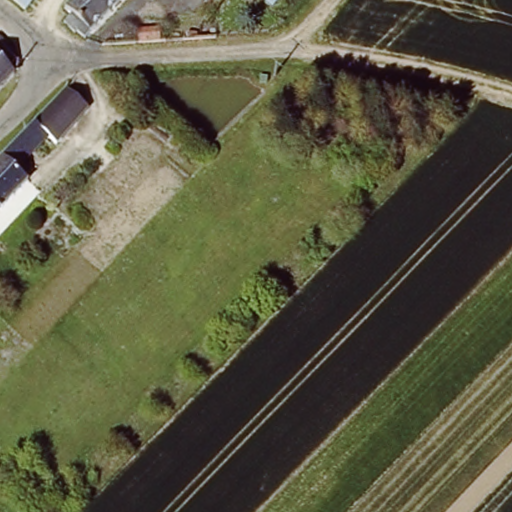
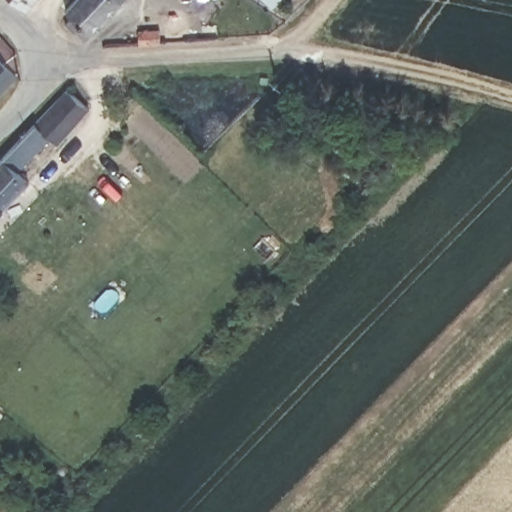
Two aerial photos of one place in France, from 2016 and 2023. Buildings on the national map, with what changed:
unchanged [(11,0),(28,0),(21,9),(11,0)]
unchanged [(64,19),(69,14),(62,7),(69,0),(116,0),(81,35),(64,19)]
unchanged [(131,35),(153,34),(154,46),(132,47),(131,35)]
unchanged [(6,49),(7,74),(0,80),(0,42),(6,49)]
unchanged [(44,153),(36,145),(19,161),(34,176),(0,209),(0,158),(71,90),(93,109),(44,153)]

